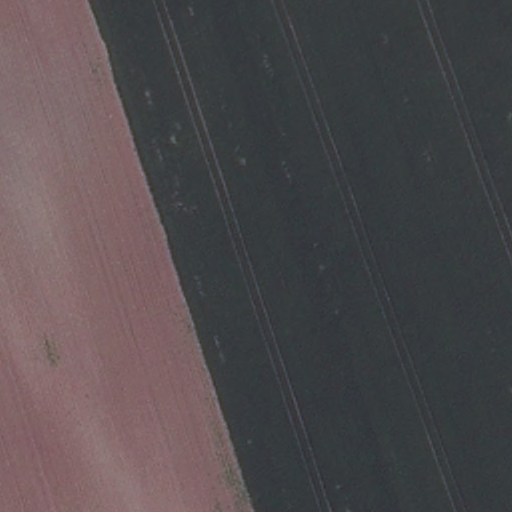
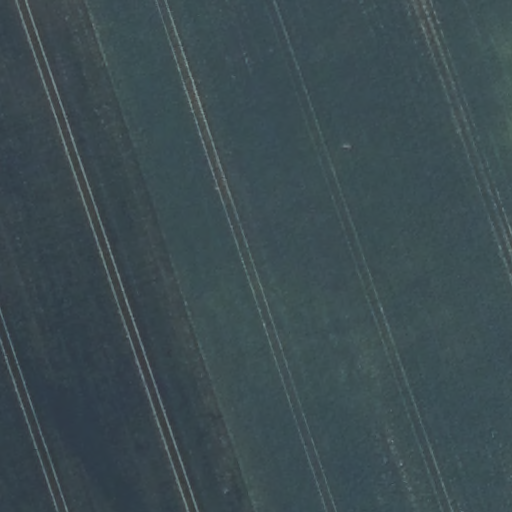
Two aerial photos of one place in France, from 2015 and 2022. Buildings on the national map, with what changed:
[]

